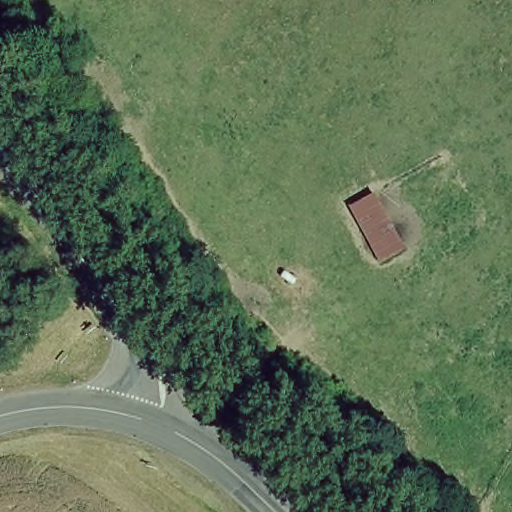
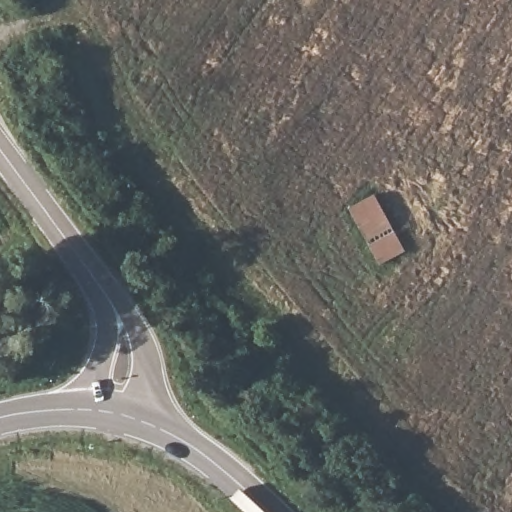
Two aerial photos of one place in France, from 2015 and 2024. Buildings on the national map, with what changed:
unchanged [(401,251),(376,263),(347,208),(372,196),(401,251)]

